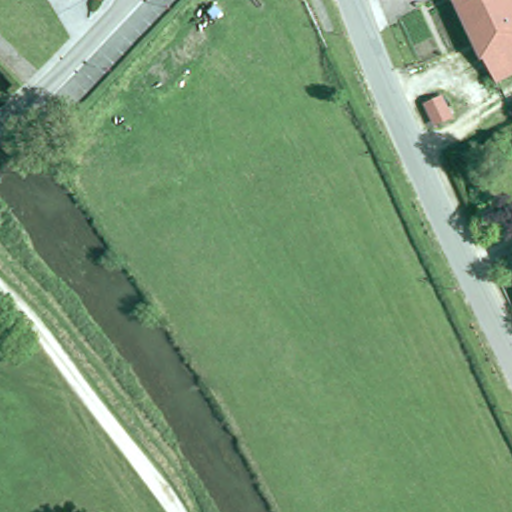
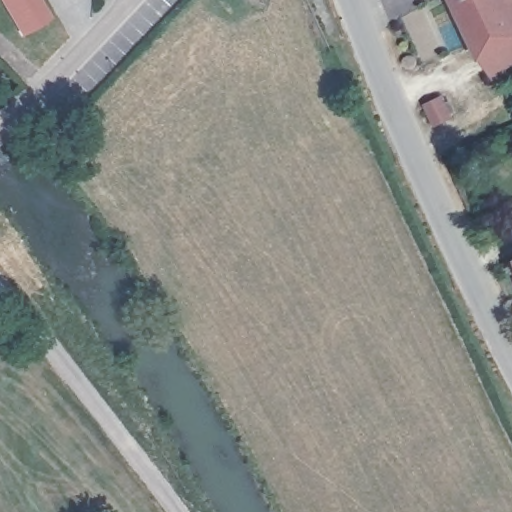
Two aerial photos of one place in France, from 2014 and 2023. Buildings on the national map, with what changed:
new [(50,22),(22,39),(0,4),(0,0),(36,0),(50,22)]
unchanged [(483,57),(456,0),(512,0),(512,43),(483,57)]
unchanged [(496,81),(483,57),(512,43),(512,73),(496,81)]
unchanged [(452,116),(436,125),(427,106),(442,99),(452,116)]

